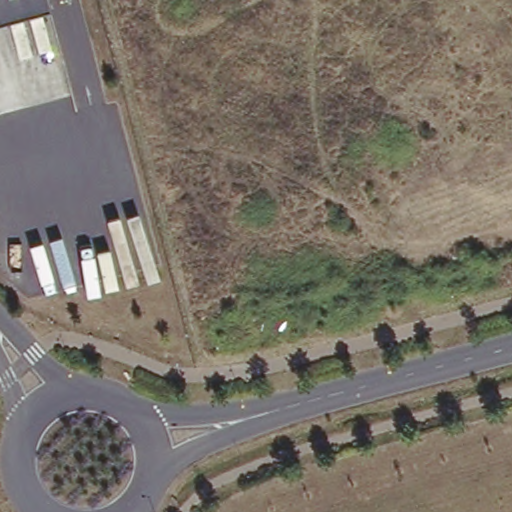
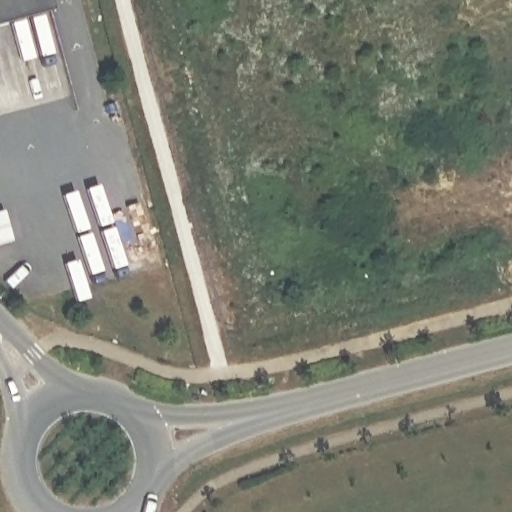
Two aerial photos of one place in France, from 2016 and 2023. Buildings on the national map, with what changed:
unchanged [(48,8),(0,21),(0,0),(46,0),(48,8)]

